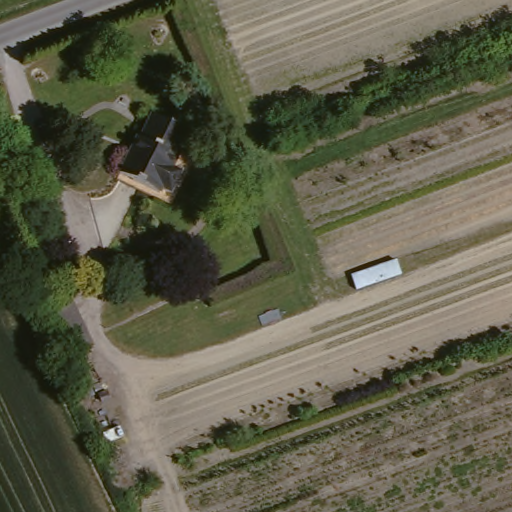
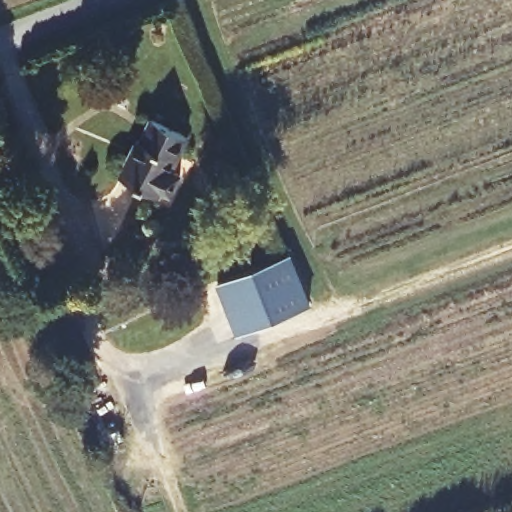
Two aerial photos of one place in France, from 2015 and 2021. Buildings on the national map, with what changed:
unchanged [(140,140),(145,142),(158,122),(192,143),(172,176),(182,182),(168,203),(159,197),(156,202),(115,177),(140,140)]
new [(217,283),(292,251),(313,302),(237,333),(217,283)]
unchanged [(70,297),(92,358),(62,367),(43,309),(70,297)]

